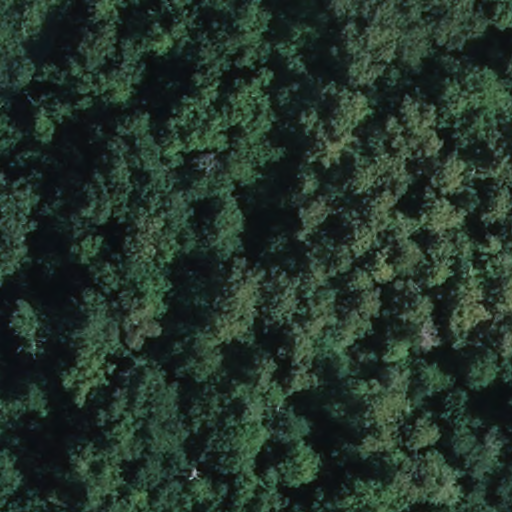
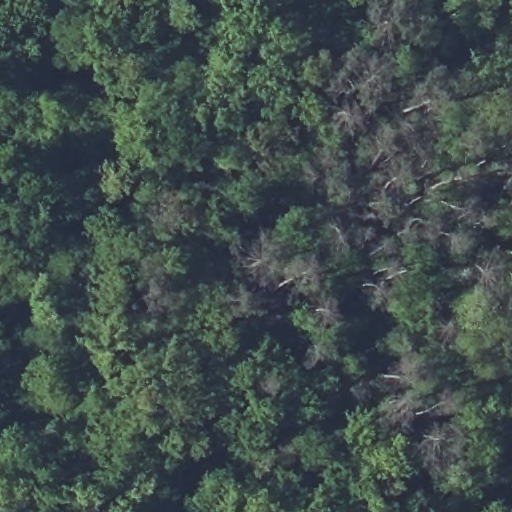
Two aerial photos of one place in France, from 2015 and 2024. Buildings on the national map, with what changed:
[]

